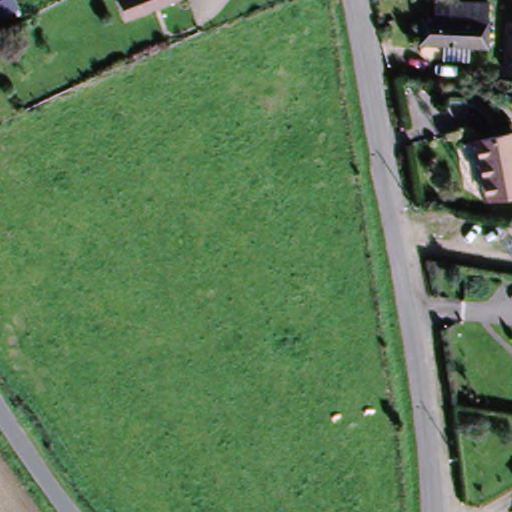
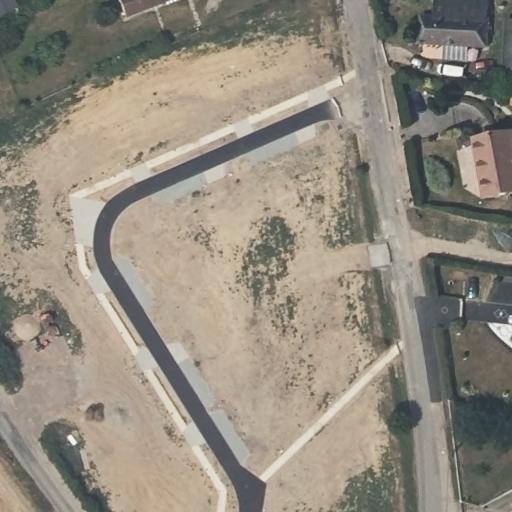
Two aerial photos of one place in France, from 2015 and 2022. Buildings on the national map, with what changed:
unchanged [(122,22),(113,0),(178,0),(122,22)]
unchanged [(415,49),(416,21),(430,22),(432,5),(484,8),(482,27),(485,27),(483,53),(463,52),(462,66),(439,64),(440,50),(415,49)]
unchanged [(505,73),(507,22),(512,22),(512,73),(505,73)]
unchanged [(486,199),(487,198),(485,197),(485,196),(474,140),(512,132),(512,194),(486,199)]

